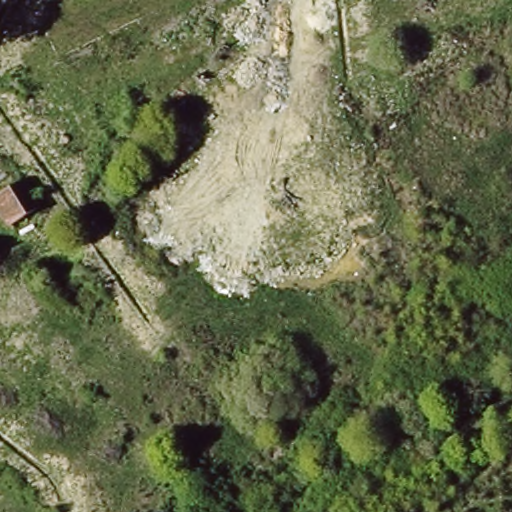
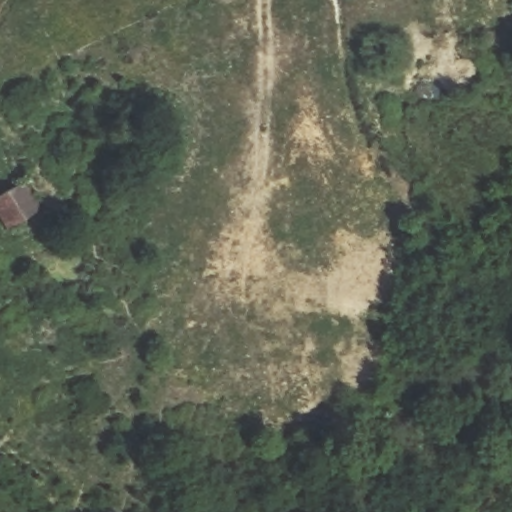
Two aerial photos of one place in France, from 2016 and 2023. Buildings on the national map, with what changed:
unchanged [(9,198),(6,193),(28,180),(45,209),(14,229),(0,206),(0,204),(9,198)]

